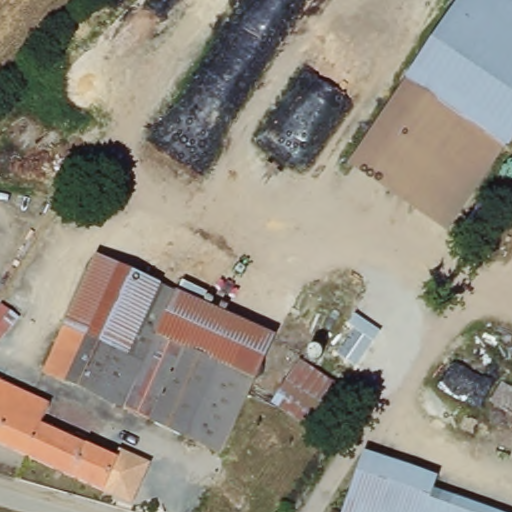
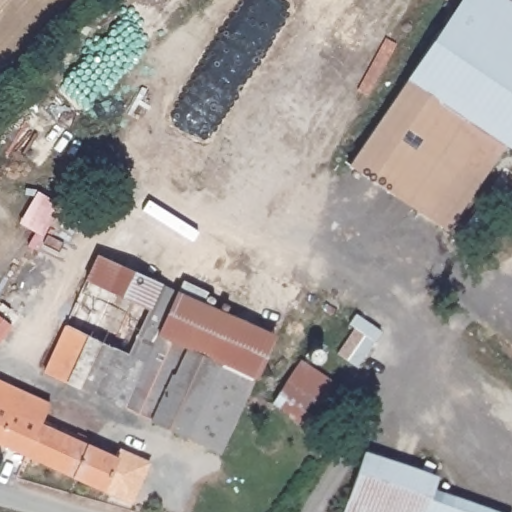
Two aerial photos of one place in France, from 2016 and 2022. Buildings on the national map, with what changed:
unchanged [(352,166),(462,0),(512,0),(512,138),(448,228),(352,166)]
unchanged [(280,336),(259,379),(162,333),(151,359),(70,324),(100,255),(182,292),(199,299),(280,336)]
unchanged [(1,303),(9,309),(18,318),(10,327),(0,338),(0,303),(1,303)]
unchanged [(49,369),(70,324),(151,359),(129,406),(49,369)]
unchanged [(226,452),(129,406),(151,359),(162,333),(259,379),(226,452)]
unchanged [(357,393),(330,437),(276,402),(306,359),(357,393)]
unchanged [(30,455),(0,441),(0,379),(16,387),(55,404),(45,424),(76,437),(61,469),(30,455)]
unchanged [(106,489),(61,469),(76,437),(120,458),(106,489)]
unchanged [(436,488),(503,512),(345,512),(366,454),(442,474),(436,488)]

